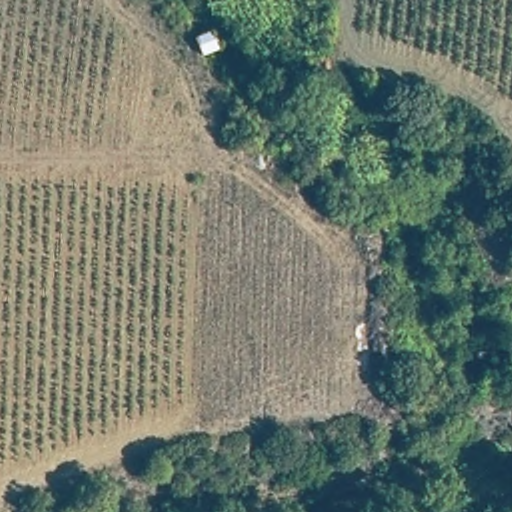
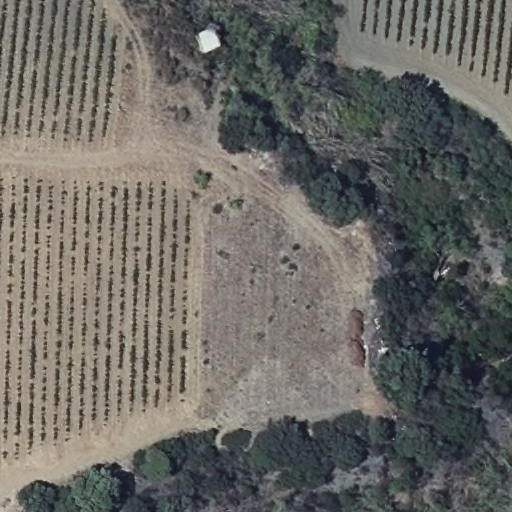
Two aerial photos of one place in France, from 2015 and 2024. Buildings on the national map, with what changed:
unchanged [(192,32),(212,25),(220,50),(202,54),(192,32)]

